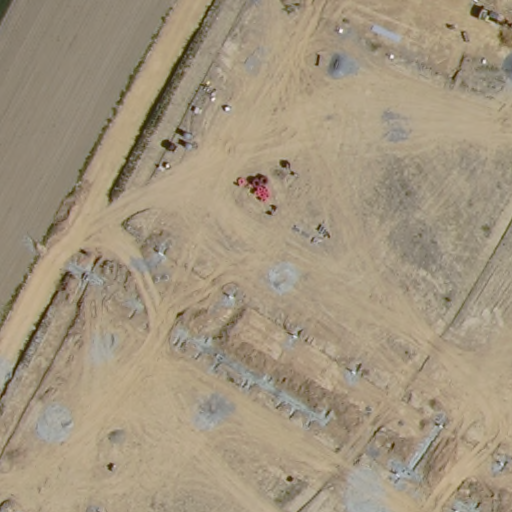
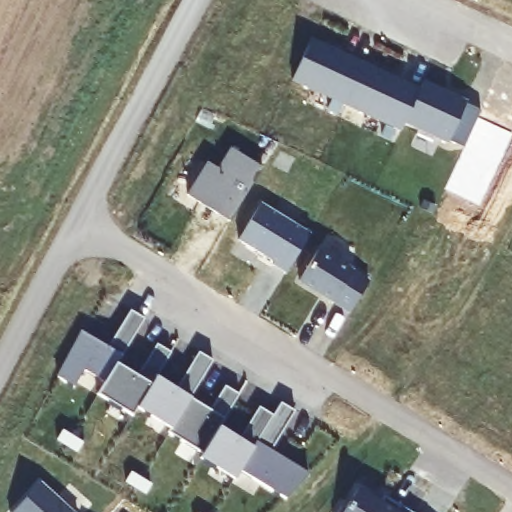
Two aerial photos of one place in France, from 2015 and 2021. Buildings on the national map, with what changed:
new [(308,32),(367,66),(348,105),(290,72),(308,32)]
new [(367,66),(421,91),(403,130),(348,105),(367,66)]
new [(233,221),(186,194),(207,161),(218,167),(229,148),(264,167),(233,221)]
new [(318,251),(369,282),(351,312),(300,281),(318,251)]
new [(102,396),(77,383),(74,387),(57,376),(81,332),(108,348),(130,310),(145,318),(119,368),(139,380),(159,347),(173,356),(158,380),(139,412),(136,416),(134,420),(99,398),(101,395),(102,396)]
new [(139,412),(158,380),(178,393),(201,355),(215,364),(171,436),(170,435),(172,432),(140,412),(139,412)]
new [(210,410),(225,386),(240,395),(225,420),(220,428),(204,453),(172,435),(193,401),(210,410)]
new [(274,416),(282,403),(296,412),(271,452),(309,475),(286,500),(240,471),(274,416)]
new [(220,428),(240,440),(260,407),(274,416),(240,471),(237,476),(235,480),(201,460),(203,456),(220,428)]
new [(144,494),(134,487),(125,482),(131,472),(140,478),(150,485),(144,494)]
new [(69,512),(13,512),(39,484),(69,512)]
new [(348,509),(360,490),(382,503),(386,497),(410,512),(341,512),(344,506),(348,509)]

